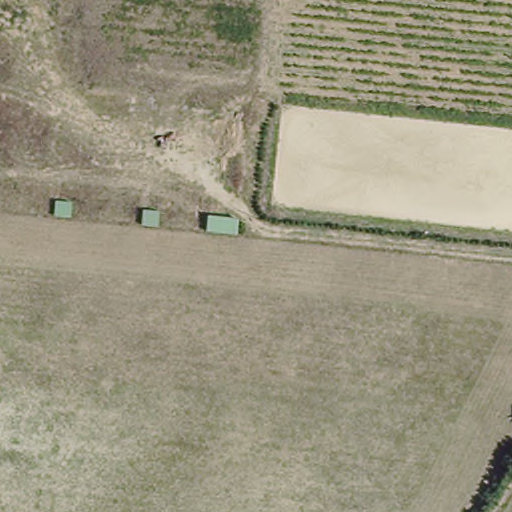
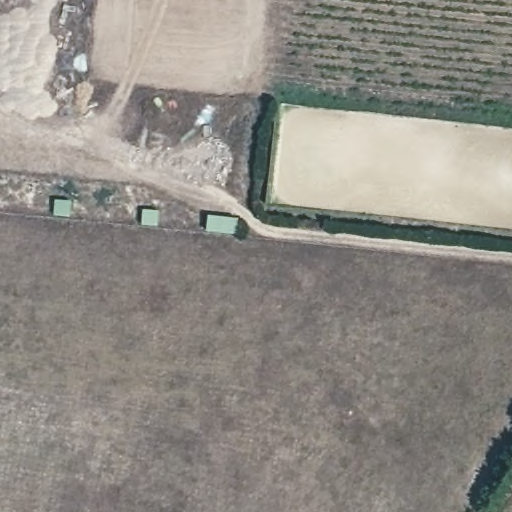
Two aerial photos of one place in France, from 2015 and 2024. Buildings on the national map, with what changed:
[]

